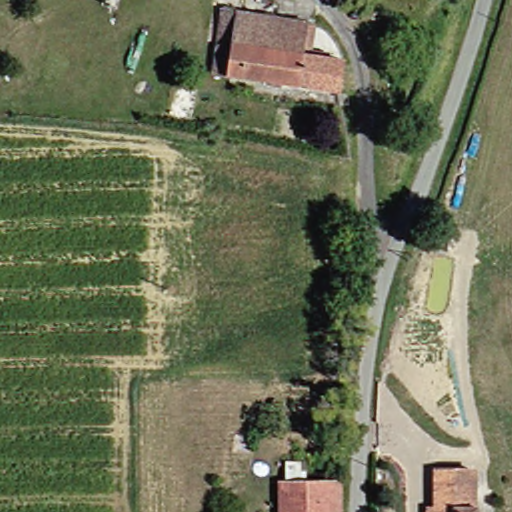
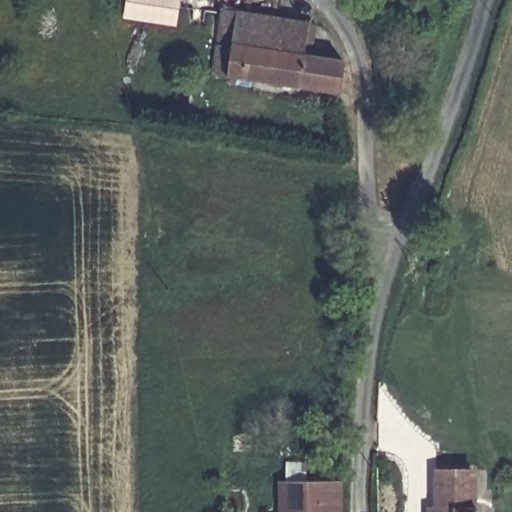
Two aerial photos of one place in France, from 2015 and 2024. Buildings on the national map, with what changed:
new [(124,18),(126,0),(181,0),(177,25),(124,18)]
unchanged [(207,72),(216,9),(303,21),(300,49),(341,55),(336,90),(207,72)]
unchanged [(426,512),(426,509),(435,509),(435,471),(468,471),(469,493),(477,493),(477,512),(426,512)]
unchanged [(271,512),(272,483),(326,483),(326,512),(271,512)]

